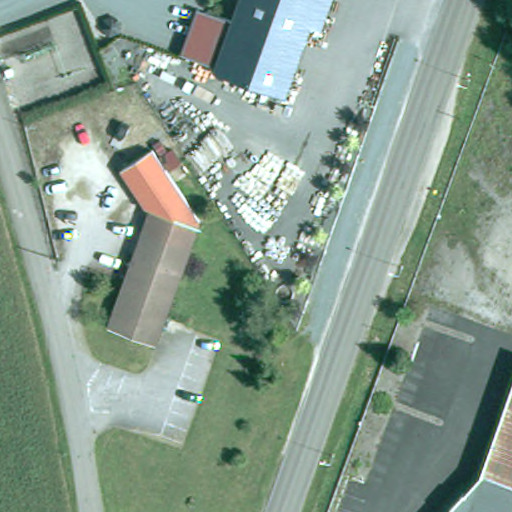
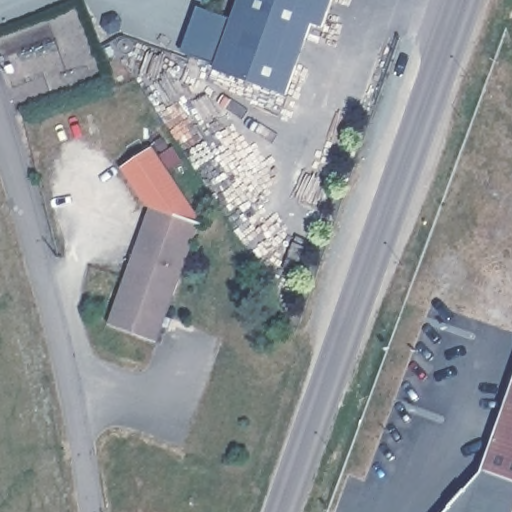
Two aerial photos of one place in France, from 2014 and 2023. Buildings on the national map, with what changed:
unchanged [(193,17),(200,20),(228,30),(236,6),(238,0),(329,0),(316,36),(306,33),(292,72),(281,105),(210,80),(211,76),(201,72),(185,65),(176,62),(182,45),(193,17)]
unchanged [(157,207),(150,205),(127,169),(157,148),(205,220),(162,341),(116,325),(157,207)]
unchanged [(485,471),(512,395),(512,512),(448,512),(485,471)]

